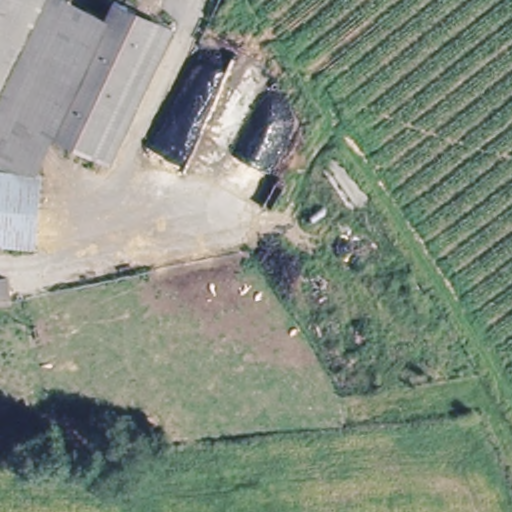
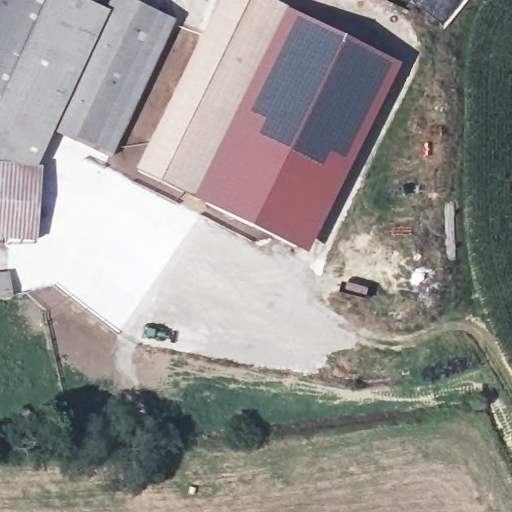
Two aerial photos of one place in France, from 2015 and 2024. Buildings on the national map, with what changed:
unchanged [(0,0),(24,0),(0,52),(0,0)]
unchanged [(0,165),(0,52),(24,0),(81,0),(98,8),(102,0),(132,0),(172,19),(112,157),(54,133),(38,167),(0,165)]
new [(195,198),(136,169),(220,0),(269,0),(288,9),(195,198)]
new [(308,254),(195,198),(288,9),(400,64),(308,254)]
unchanged [(0,165),(38,167),(35,244),(0,243),(0,165)]
unchanged [(9,297),(0,298),(0,272),(7,272),(9,297)]

